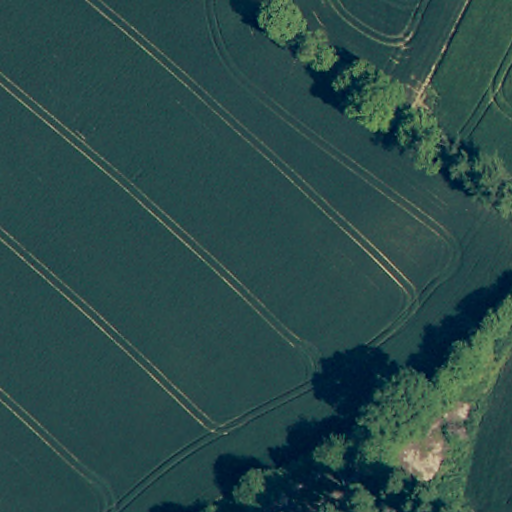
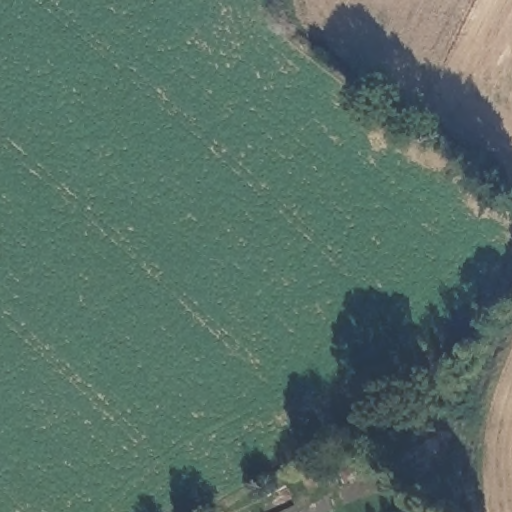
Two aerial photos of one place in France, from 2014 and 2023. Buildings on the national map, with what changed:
unchanged [(364,474),(345,482),(336,461),(355,453),(364,474)]

